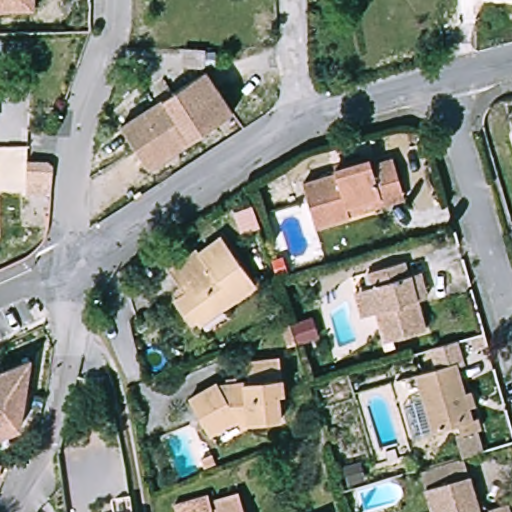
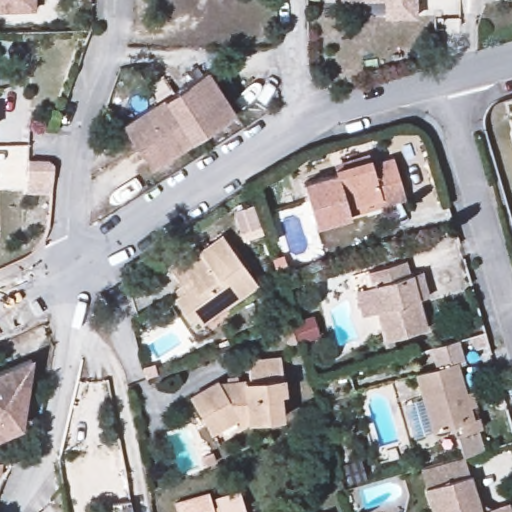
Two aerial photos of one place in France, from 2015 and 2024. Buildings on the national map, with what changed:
unchanged [(0,0),(39,0),(40,11),(0,10),(0,0)]
new [(383,19),(383,0),(339,1),(339,0),(417,0),(417,19),(383,19)]
unchanged [(237,114),(155,172),(125,129),(208,72),(237,114)]
unchanged [(27,185),(28,164),(55,167),(54,186),(27,185)]
unchanged [(381,170),(398,166),(408,197),(350,212),(353,225),(318,235),(307,190),(344,180),(342,173),(379,164),(381,170)]
unchanged [(209,254),(228,240),(260,287),(230,311),(223,305),(199,324),(180,300),(188,293),(173,271),(203,249),(209,254)]
unchanged [(364,288),(379,283),(375,268),(412,259),(432,326),(394,336),(386,310),(371,315),(364,288)]
unchanged [(409,413),(429,407),(420,378),(443,373),(437,355),(463,347),(469,372),(462,373),(478,424),(483,423),(486,435),(466,439),(463,430),(437,436),(417,442),(409,413)]
unchanged [(24,430),(0,439),(0,371),(35,356),(24,430)]
unchanged [(285,364),(288,396),(282,396),(283,422),(244,427),(238,421),(226,429),(216,417),(206,423),(193,405),(219,385),(227,387),(251,385),(251,366),(285,364)]
unchanged [(490,512),(441,512),(434,490),(476,475),(490,512)]
unchanged [(210,498),(239,490),(245,512),(213,512),(210,498)]
unchanged [(512,506),(512,512),(493,512),(512,506)]

